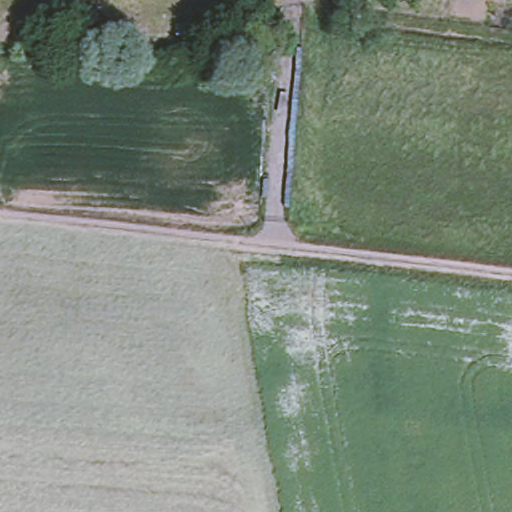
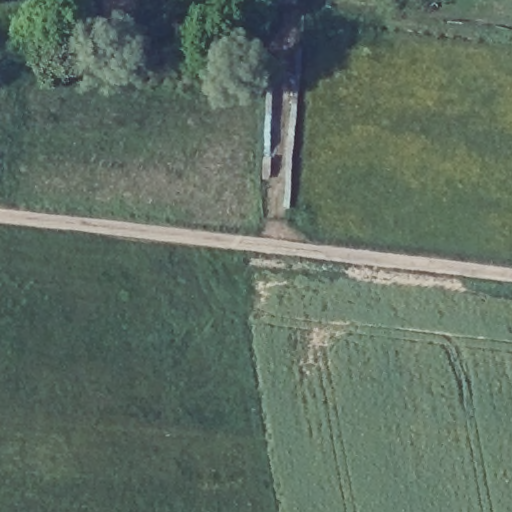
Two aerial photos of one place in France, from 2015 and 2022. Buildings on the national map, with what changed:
[]

